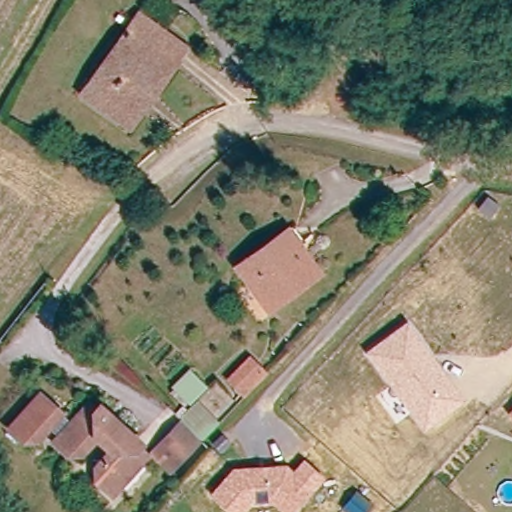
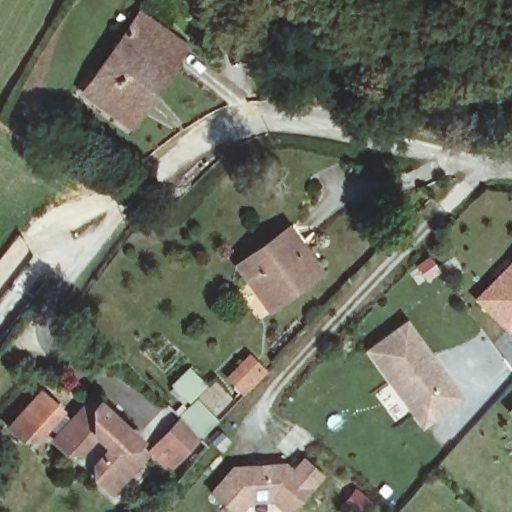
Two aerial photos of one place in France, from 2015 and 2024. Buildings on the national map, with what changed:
unchanged [(127,126),(100,105),(84,93),(96,77),(128,35),(142,18),(162,33),(186,51),(179,61),(174,66),(152,95),(140,111),(127,126)]
unchanged [(271,311),(236,268),(254,255),(282,233),(302,258),(316,275),(271,311)]
new [(473,301),(512,260),(512,330),(508,334),(473,301)]
unchanged [(465,401),(423,431),(365,349),(406,320),(465,401)]
unchanged [(242,392),(227,375),(247,356),(262,370),(242,392)]
unchanged [(204,386),(185,405),(170,387),(187,370),(204,386)]
unchanged [(60,414),(37,440),(21,441),(7,428),(39,393),(60,414)]
unchanged [(198,400),(219,422),(202,440),(180,420),(198,400)]
unchanged [(512,408),(512,416),(508,412),(512,408)]
unchanged [(93,483),(93,470),(99,465),(99,457),(92,449),(84,450),(76,458),(62,456),(52,446),(81,412),(89,419),(97,413),(134,448),(130,453),(137,462),(107,495),(93,483)]
unchanged [(180,463),(163,444),(182,424),(201,441),(180,463)]
unchanged [(232,470),(283,465),(291,471),(301,463),(318,478),(297,502),(288,511),(273,500),(249,501),(241,512),(231,512),(210,494),(232,470)]

